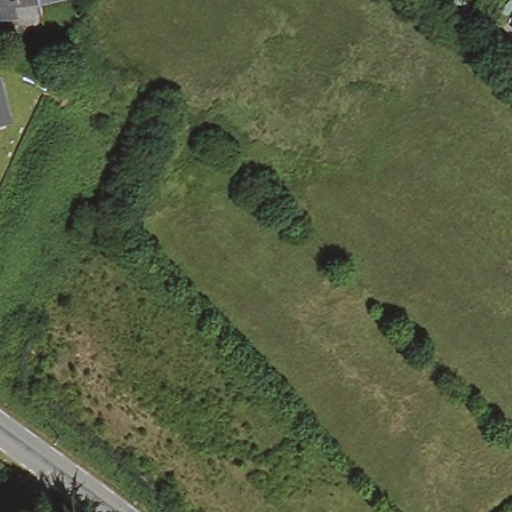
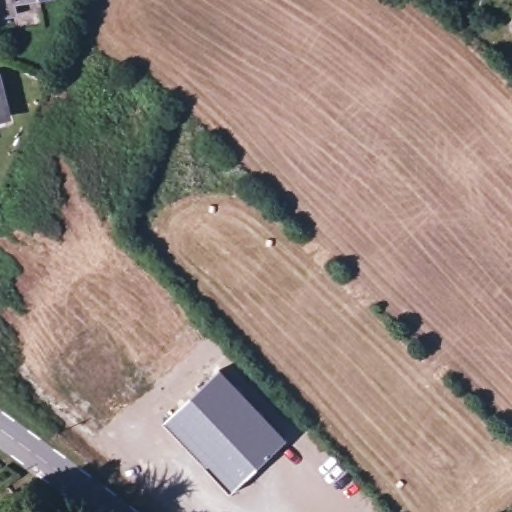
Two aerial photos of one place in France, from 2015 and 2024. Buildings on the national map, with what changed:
unchanged [(0,7),(0,0),(9,0),(10,6),(0,7)]
unchanged [(508,29),(512,24),(512,32),(508,29)]
new [(220,369),(287,439),(229,492),(164,423),(220,369)]

